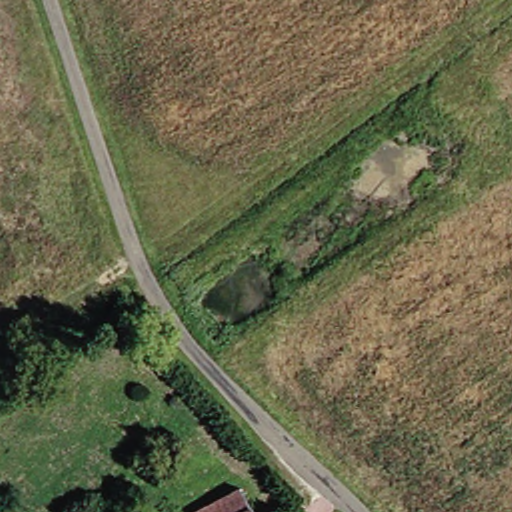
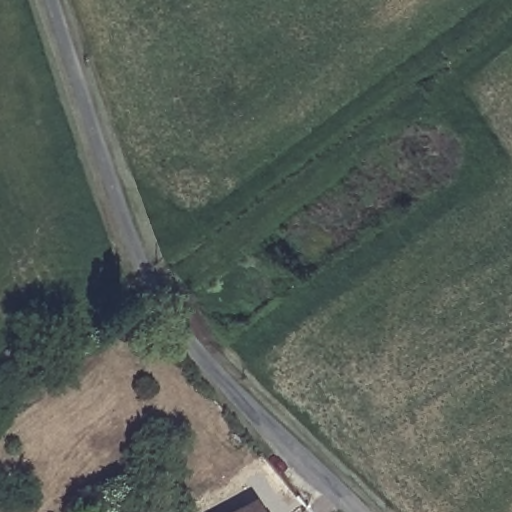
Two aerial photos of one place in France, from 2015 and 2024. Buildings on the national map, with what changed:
unchanged [(254,512),(195,512),(241,487),(254,512)]

